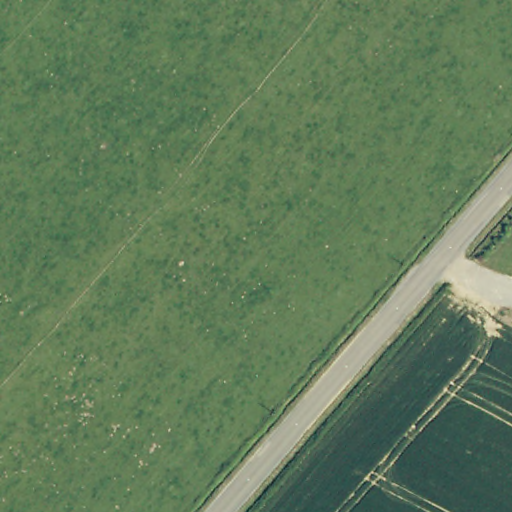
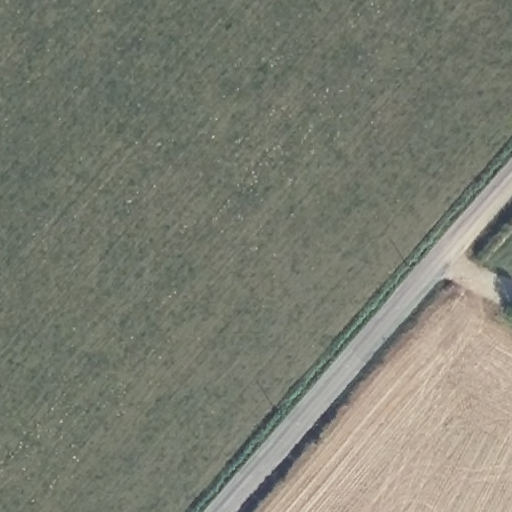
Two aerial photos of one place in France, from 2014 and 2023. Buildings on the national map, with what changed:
[]

